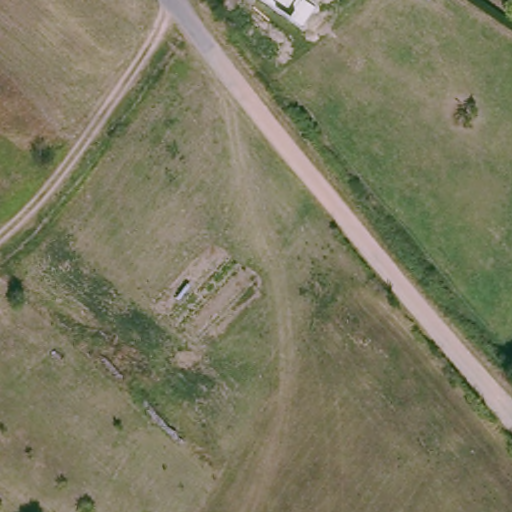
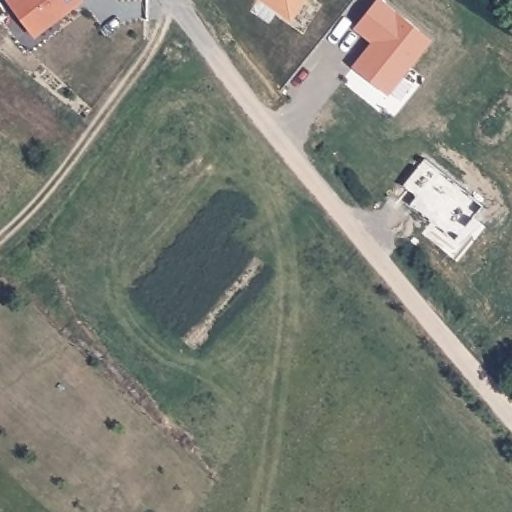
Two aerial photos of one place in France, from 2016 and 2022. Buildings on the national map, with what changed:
new [(35,37),(8,0),(82,0),(83,0),(35,37)]
unchanged [(267,0),(301,0),(289,16),(267,0)]
new [(376,40),(358,26),(378,0),(384,0),(433,37),(390,91),(356,64),(376,40)]
new [(428,156),(487,203),(477,215),(489,224),(461,260),(426,232),(435,220),(413,203),(420,195),(406,184),(428,156)]

